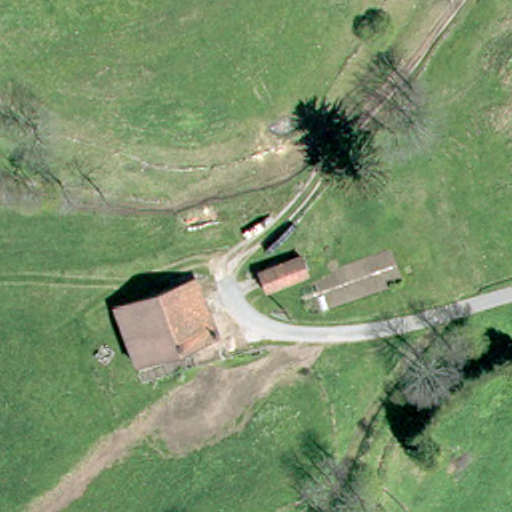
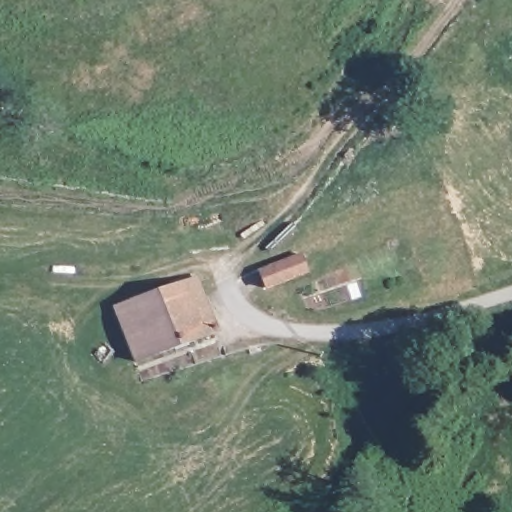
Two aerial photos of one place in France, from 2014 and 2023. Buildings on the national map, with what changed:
unchanged [(295,252),(301,276),(264,286),(260,261),(295,252)]
unchanged [(130,359),(114,317),(108,304),(171,279),(190,278),(210,332),(130,359)]

